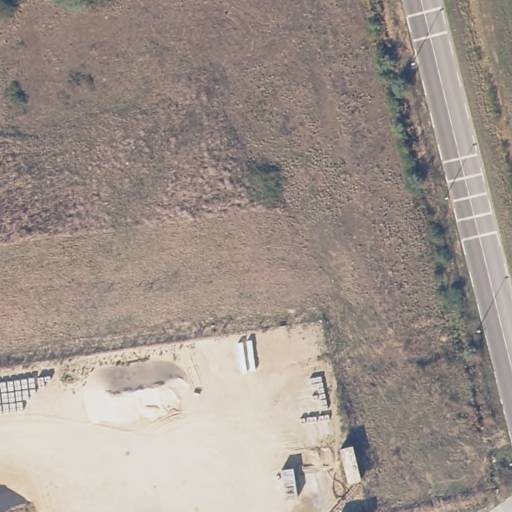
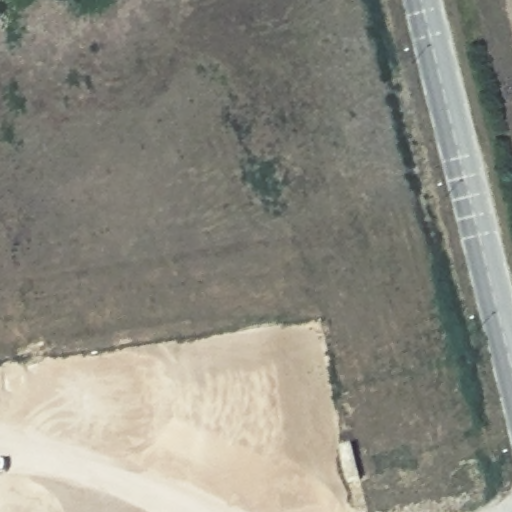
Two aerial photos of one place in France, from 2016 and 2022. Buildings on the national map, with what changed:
[]

